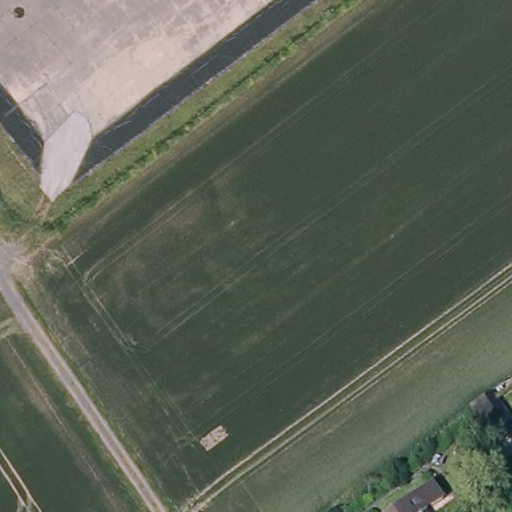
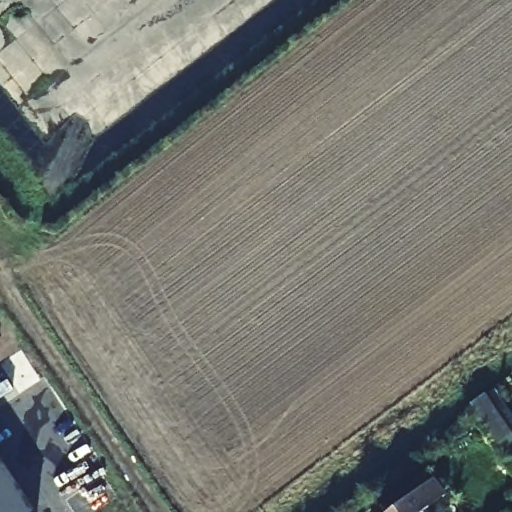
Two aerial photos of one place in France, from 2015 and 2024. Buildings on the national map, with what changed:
new [(31,512),(0,512),(0,465),(31,512)]
unchanged [(411,497),(419,491),(428,503),(419,509),(422,512),(391,512),(411,497)]

